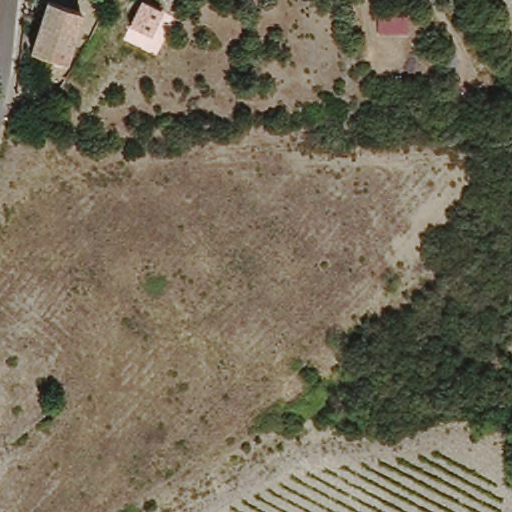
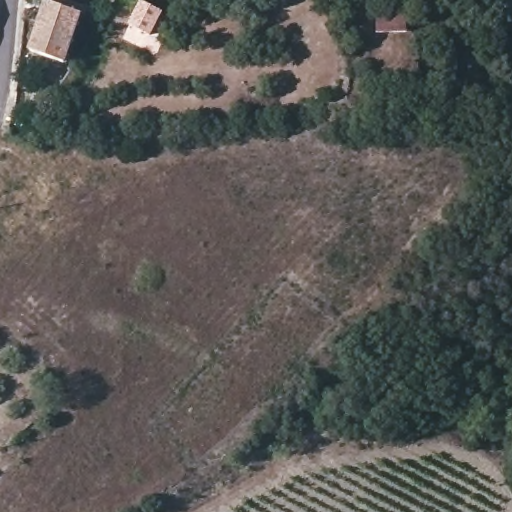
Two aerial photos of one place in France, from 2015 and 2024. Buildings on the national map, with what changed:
unchanged [(34,53),(52,2),(86,13),(67,65),(34,53)]

